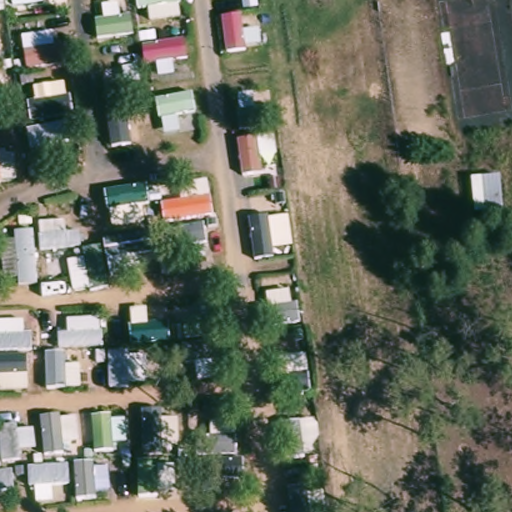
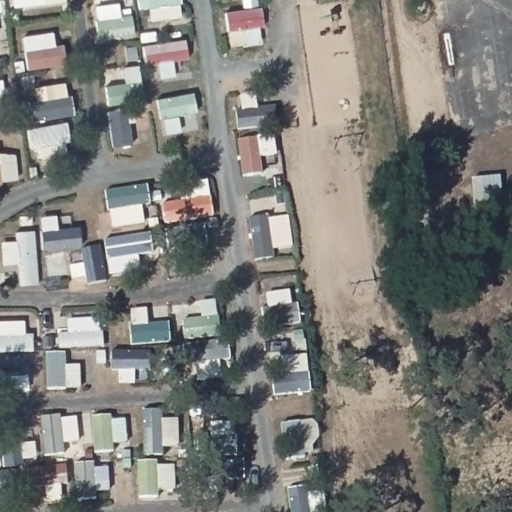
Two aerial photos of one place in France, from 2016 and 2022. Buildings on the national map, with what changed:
unchanged [(498,180),(507,203),(465,213),(462,191),(498,180)]
unchanged [(289,334),(293,365),(270,370),(265,339),(289,334)]

